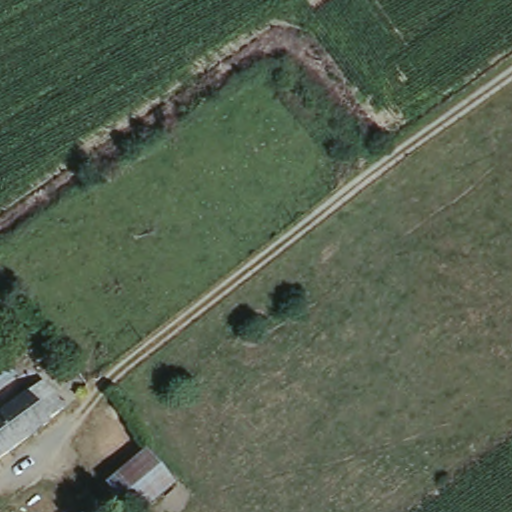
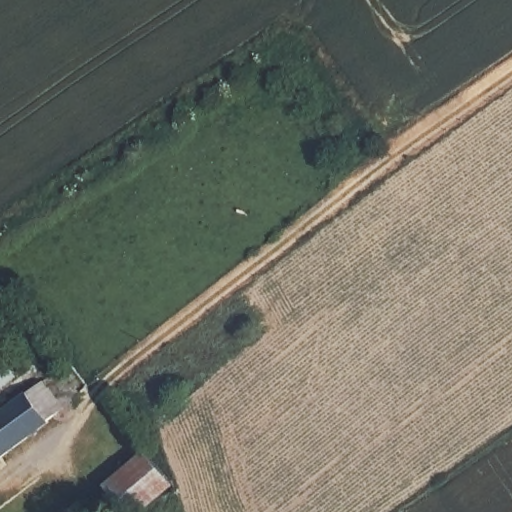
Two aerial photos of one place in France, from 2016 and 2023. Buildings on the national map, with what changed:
unchanged [(67,410),(51,426),(0,464),(0,415),(44,381),(67,410)]
unchanged [(124,512),(109,493),(143,464),(150,459),(171,487),(164,493),(138,512),(124,512)]

